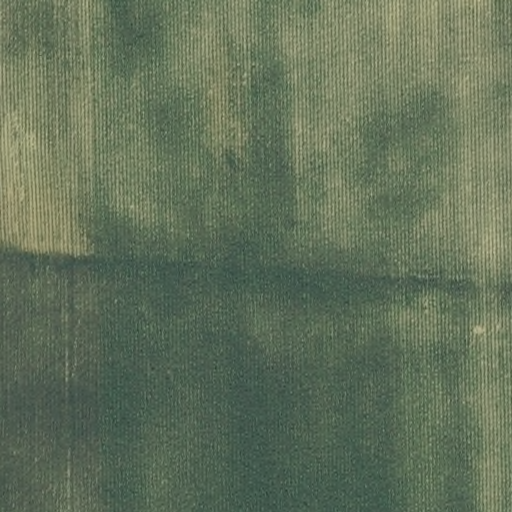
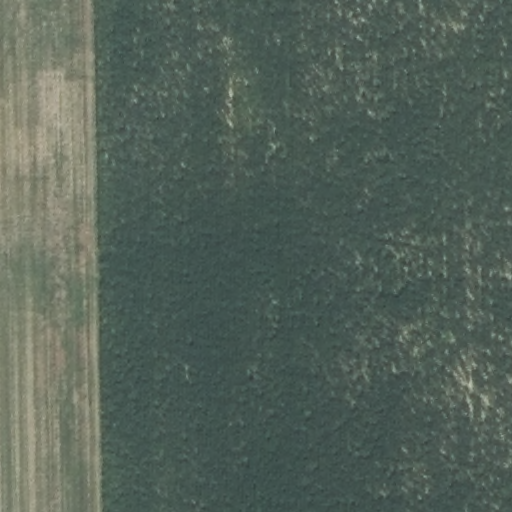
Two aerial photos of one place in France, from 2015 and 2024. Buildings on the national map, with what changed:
[]

